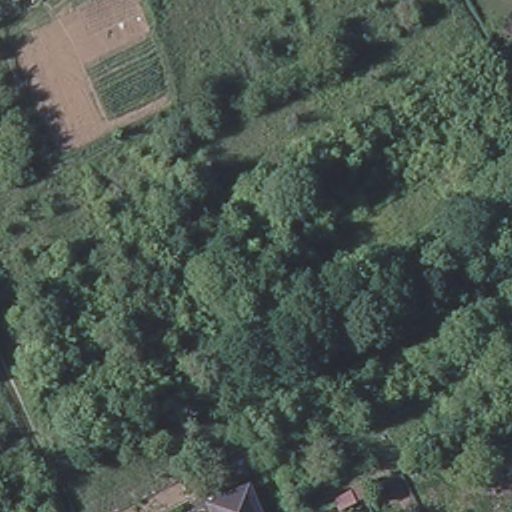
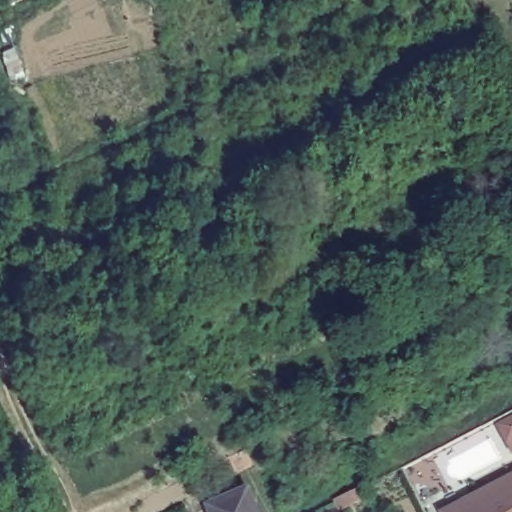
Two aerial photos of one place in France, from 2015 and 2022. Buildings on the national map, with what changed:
new [(440,511),(512,474),(512,512),(440,512),(440,511)]
unchanged [(208,507),(247,493),(255,512),(210,512),(208,507)]

